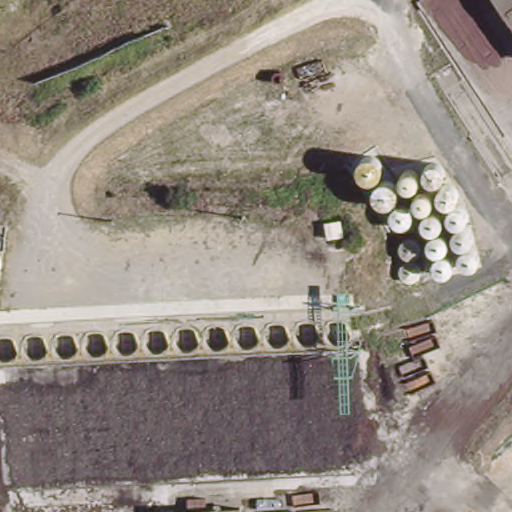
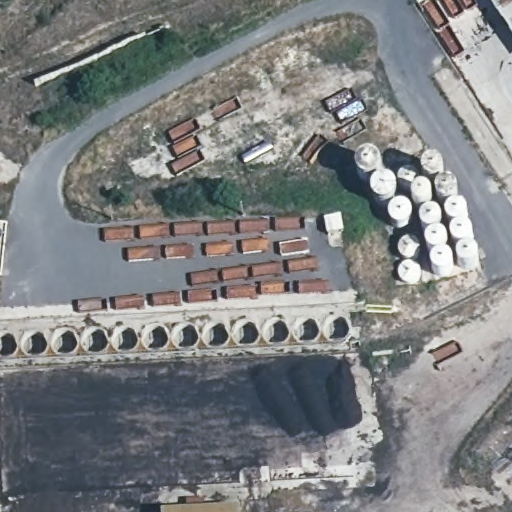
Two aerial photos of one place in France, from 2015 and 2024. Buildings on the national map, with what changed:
unchanged [(512,0),(512,33),(490,0),(512,0)]
unchanged [(238,512),(160,512),(160,509),(238,509),(238,512)]

